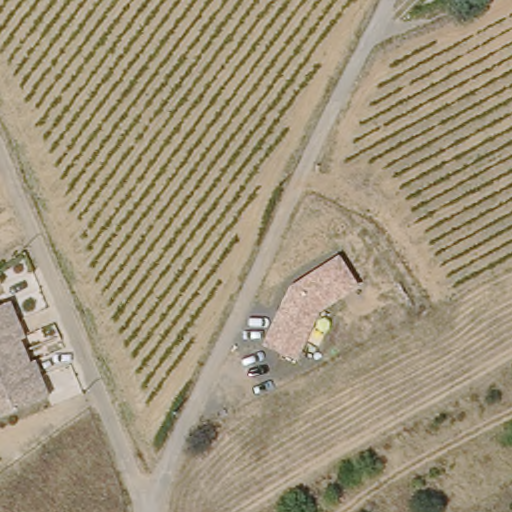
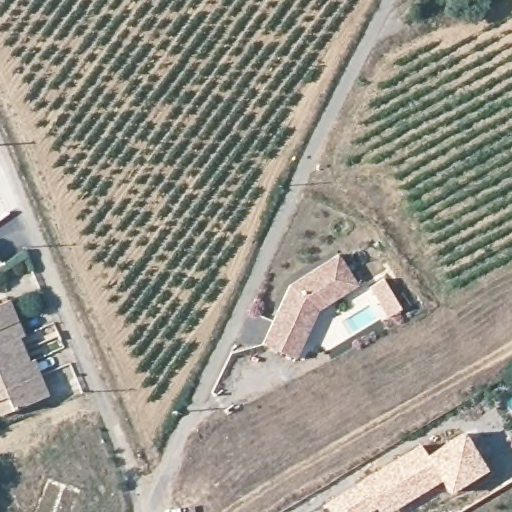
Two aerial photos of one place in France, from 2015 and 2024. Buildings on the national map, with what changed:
unchanged [(290,286),(340,255),(359,288),(318,312),(295,360),(261,346),(290,286)]
new [(382,278),(400,308),(386,317),(368,287),(382,278)]
unchanged [(9,303),(25,339),(18,341),(29,363),(33,360),(47,400),(0,418),(0,306),(9,303)]
new [(464,431),(488,471),(448,496),(440,483),(426,454),(464,431)]
new [(375,471),(420,444),(426,454),(440,483),(392,512),(377,512),(375,510),(371,512),(329,512),(325,505),(375,471)]

